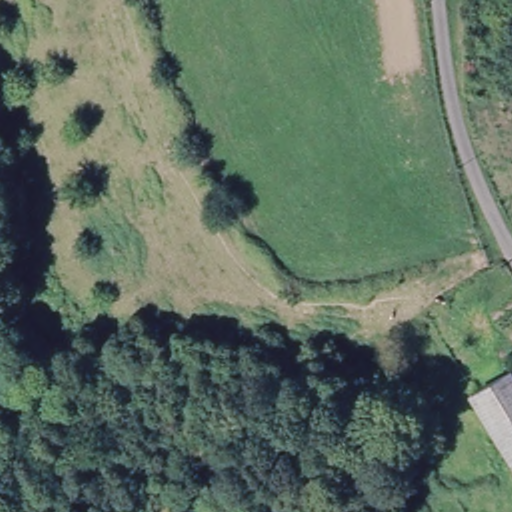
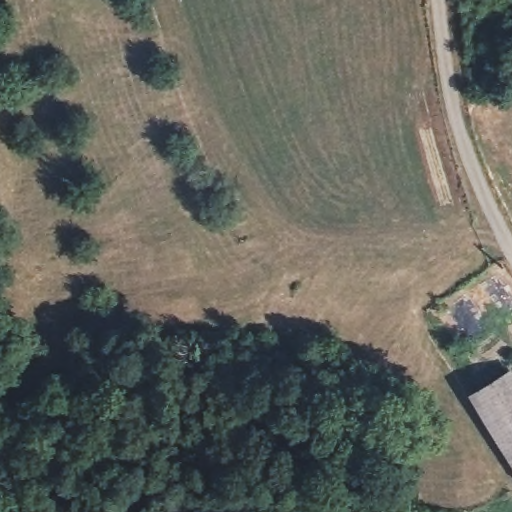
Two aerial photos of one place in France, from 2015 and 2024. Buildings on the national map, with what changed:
unchanged [(480,400),(486,396),(508,381),(512,388),(512,464),(473,405),(480,400)]

